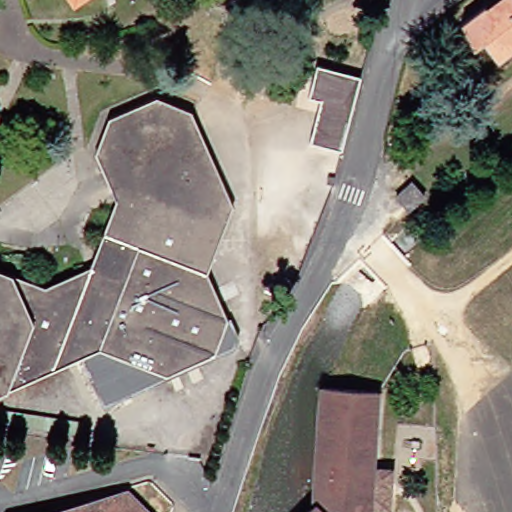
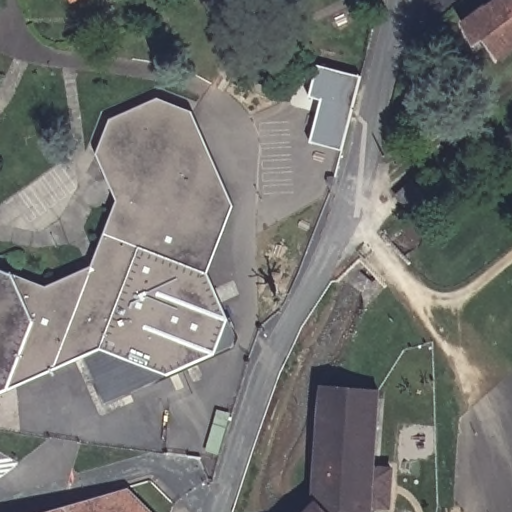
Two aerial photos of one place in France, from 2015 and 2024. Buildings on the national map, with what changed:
unchanged [(57,0),(80,0),(65,11),(57,0)]
unchanged [(487,51),(475,35),(465,42),(455,21),(477,4),(482,9),(493,0),(512,0),(512,32),(487,51)]
unchanged [(309,144),(320,101),(307,97),(314,65),(360,77),(340,152),(309,144)]
unchanged [(107,122),(157,100),(189,112),(190,115),(97,154),(107,122)]
unchanged [(97,154),(190,115),(209,158),(115,198),(97,154)]
unchanged [(87,271),(115,198),(209,158),(230,207),(204,273),(224,321),(214,361),(160,383),(92,357),(0,396),(0,275),(39,290),(87,271)]
unchanged [(407,197),(396,184),(412,170),(425,184),(407,197)]
unchanged [(314,466),(319,391),(375,395),(370,475),(387,476),(386,512),(368,512),(310,512),(314,466)]
unchanged [(112,490),(135,512),(20,512),(112,490)]

